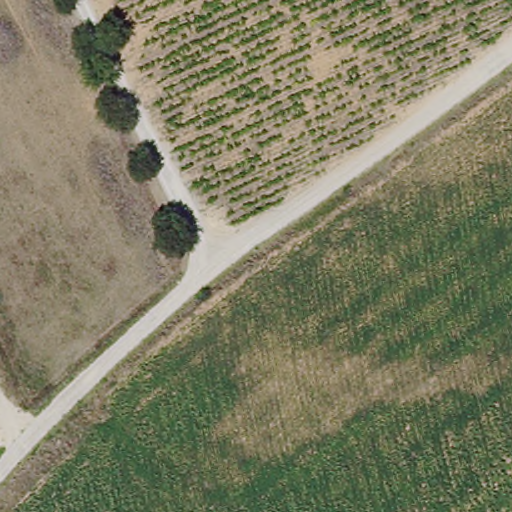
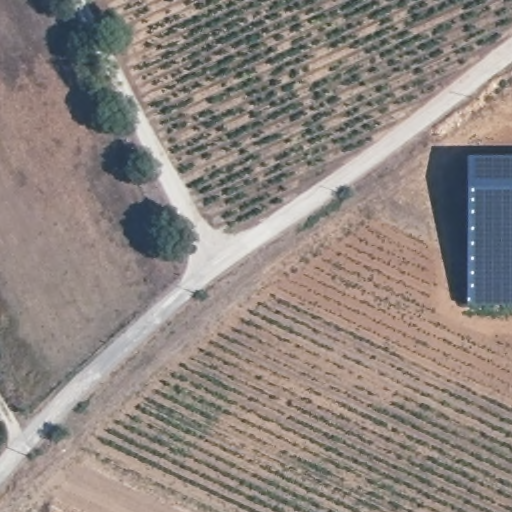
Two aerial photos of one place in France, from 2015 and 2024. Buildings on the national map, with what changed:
new [(467,157),(512,157),(512,305),(467,305),(467,157)]

